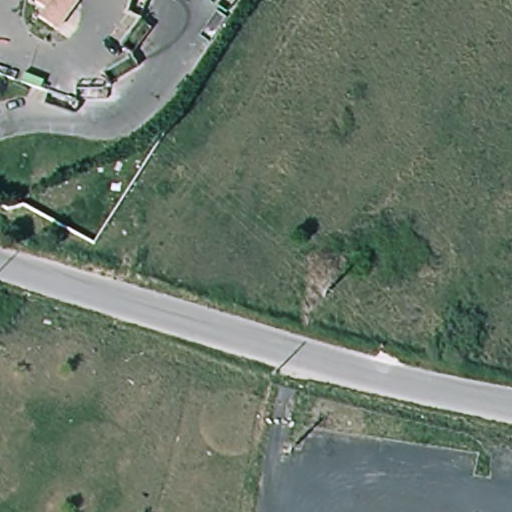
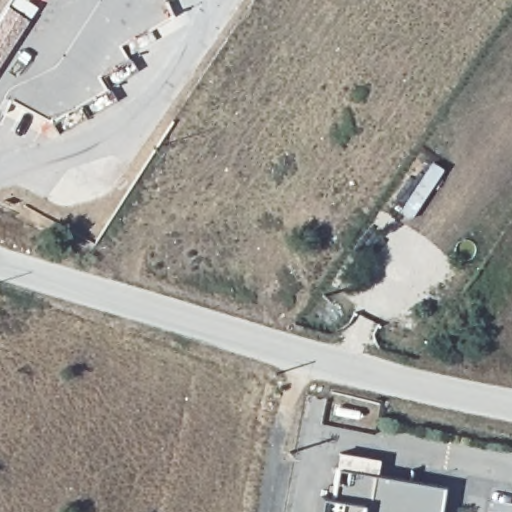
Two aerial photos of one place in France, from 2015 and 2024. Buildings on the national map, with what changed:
new [(27,0),(36,6),(0,62),(0,16),(11,0),(27,0)]
unchanged [(58,34),(43,24),(49,15),(39,8),(45,0),(48,0),(56,5),(60,0),(69,0),(78,5),(58,34)]
new [(332,498),(338,468),(445,487),(441,512),(317,512),(320,496),(332,498)]

